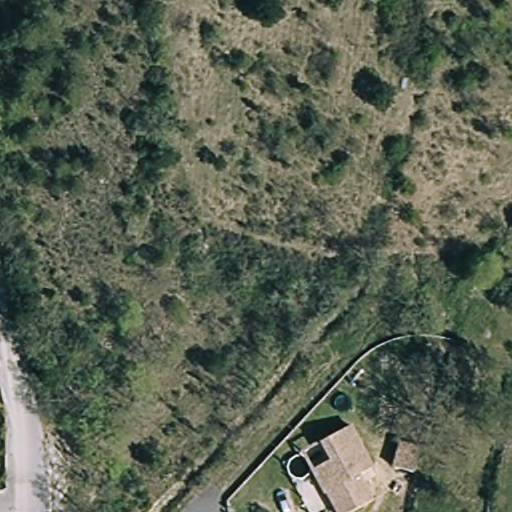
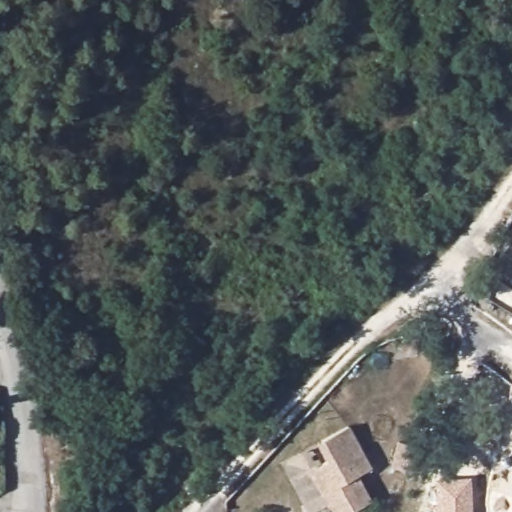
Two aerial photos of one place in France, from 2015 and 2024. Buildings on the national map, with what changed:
unchanged [(307,470),(328,461),(319,439),(350,425),(370,469),(360,475),(370,504),(355,512),(333,512),(326,495),(318,498),(307,470)]
unchanged [(430,462),(412,458),(419,429),(438,434),(430,462)]
new [(438,481),(469,479),(472,509),(472,512),(440,512),(440,510),(438,481)]

